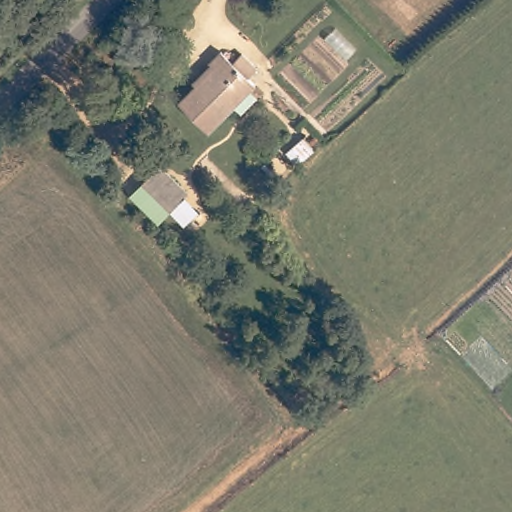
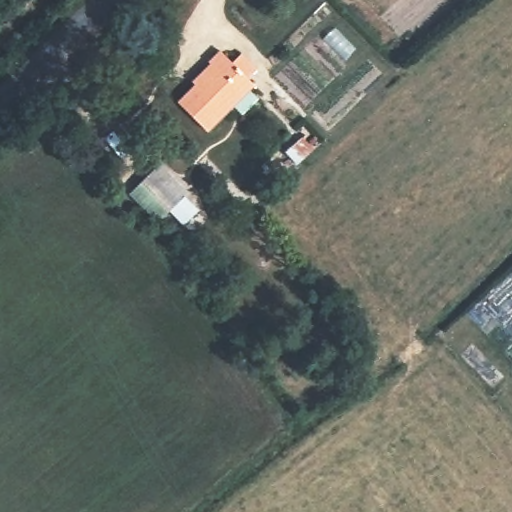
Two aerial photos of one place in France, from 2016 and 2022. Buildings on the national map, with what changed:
unchanged [(251,74),(258,81),(212,127),(183,98),(216,64),(210,58),(224,45),(234,58),(245,47),(261,63),(251,74)]
unchanged [(169,213),(141,184),(160,166),(188,195),(169,213)]

